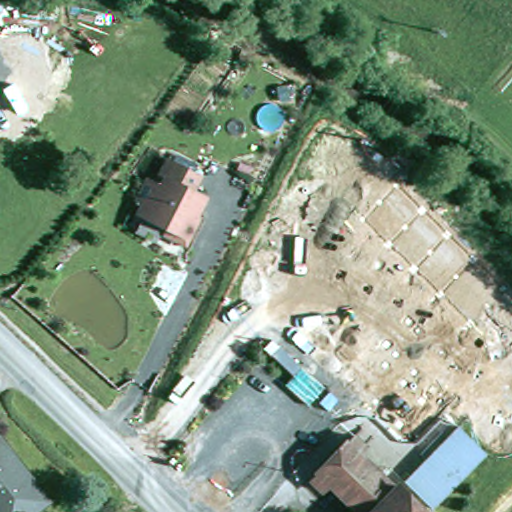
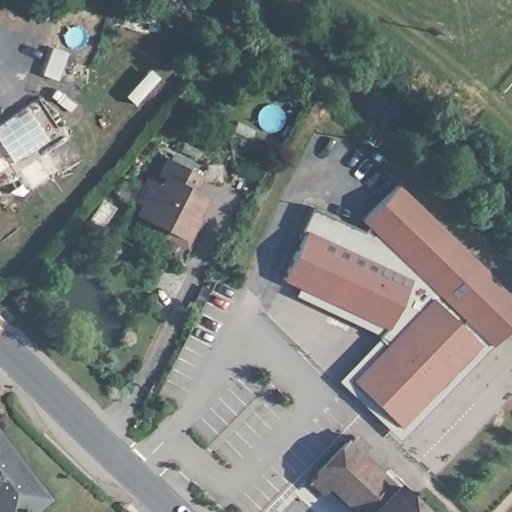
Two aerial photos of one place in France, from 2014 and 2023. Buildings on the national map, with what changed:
unchanged [(138,201),(132,199),(142,176),(153,181),(163,155),(198,170),(190,187),(203,192),(193,213),(198,215),(183,243),(163,234),(166,227),(146,218),(133,212),(138,201)]
new [(361,220),(397,184),(512,295),(512,321),(489,345),(399,438),(339,378),(381,334),(296,293),(299,286),(281,279),(304,230),(300,229),(311,207),(363,230),(366,226),(361,220)]
demolished [(458,377),(472,392),(449,417),(434,401),(458,377)]
demolished [(409,477),(456,431),(482,458),(437,506),(409,477)]
unchanged [(346,442),(391,487),(397,481),(428,512),(365,512),(320,468),(346,442)]
unchanged [(37,512),(0,512),(0,444),(21,470),(48,503),(39,510),(37,512)]

